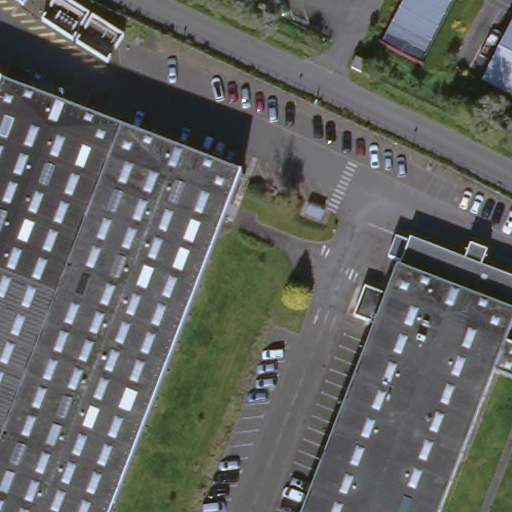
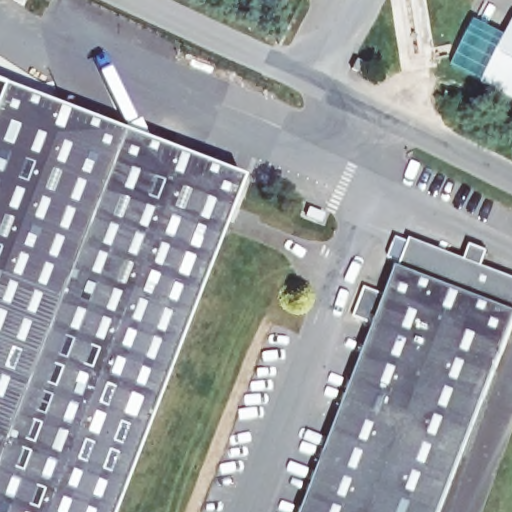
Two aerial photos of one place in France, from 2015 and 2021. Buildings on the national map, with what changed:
unchanged [(14,0),(12,2),(9,0),(14,0)]
unchanged [(65,0),(124,37),(107,64),(42,24),(58,0),(65,0)]
demolished [(462,0),(427,65),(382,40),(404,0),(462,0)]
unchanged [(512,26),(512,97),(508,95),(482,81),(512,26)]
unchanged [(112,512),(0,512),(0,82),(240,178),(112,512)]
unchanged [(375,334),(352,325),(364,293),(387,302),(405,256),(429,266),(433,254),(501,281),(496,292),(512,298),(512,333),(506,348),(512,350),(512,386),(495,379),(444,512),(306,512),(375,334)]

